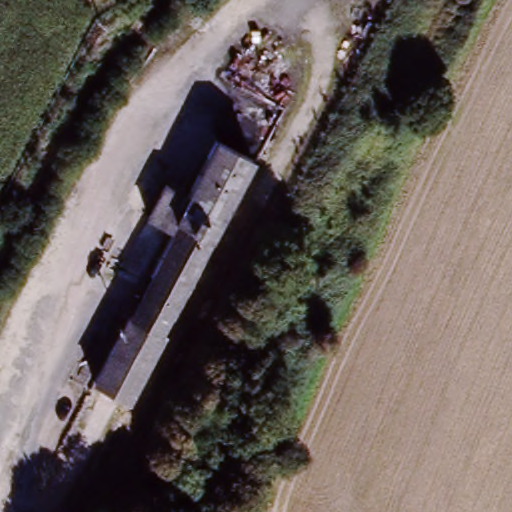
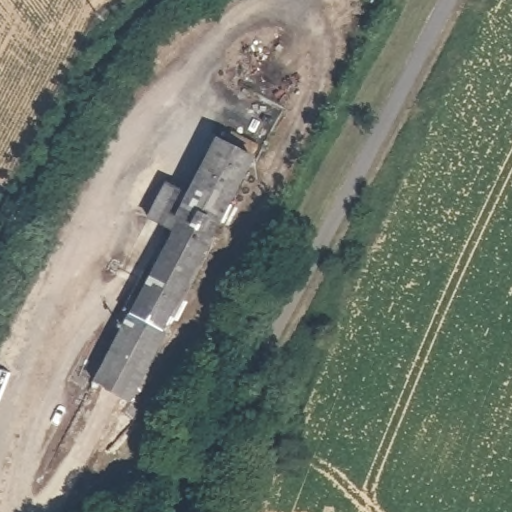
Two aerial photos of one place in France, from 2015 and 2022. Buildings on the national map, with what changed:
unchanged [(172,235),(149,222),(171,174),(193,181),(212,137),(260,165),(136,405),(95,378),(172,235)]

